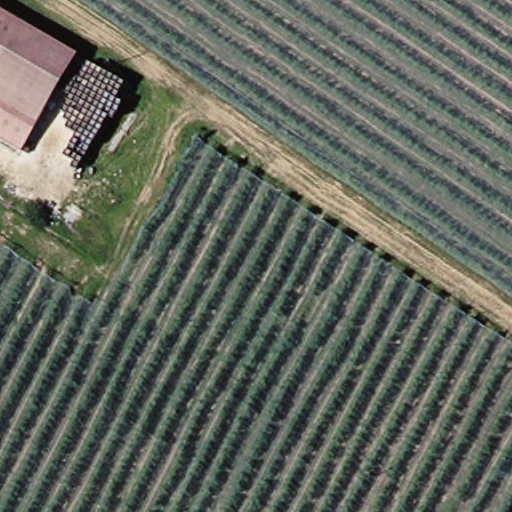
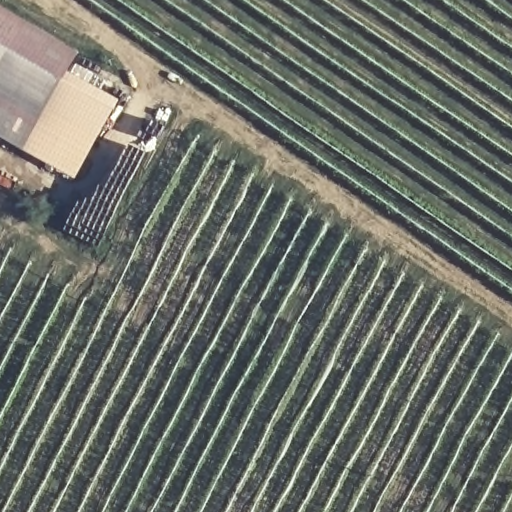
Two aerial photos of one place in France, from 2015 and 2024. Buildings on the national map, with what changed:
unchanged [(46,101),(22,142),(0,129),(0,0),(8,0),(80,42),(46,101)]
new [(78,173),(22,142),(46,101),(63,72),(120,103),(78,173)]

